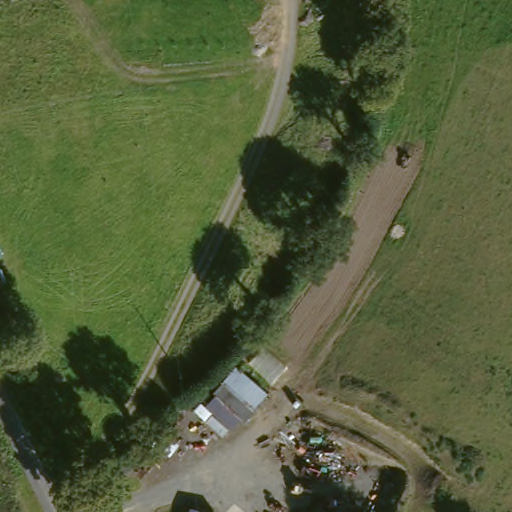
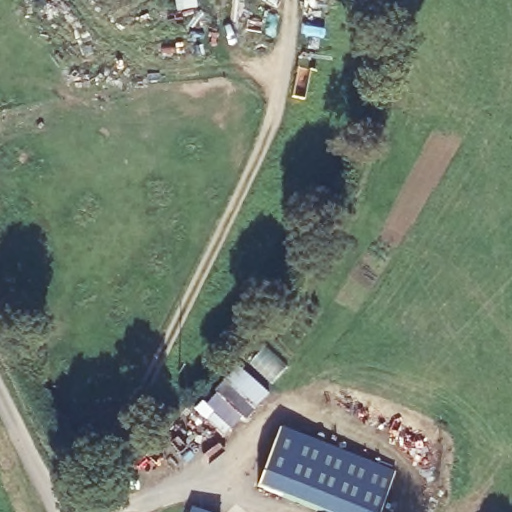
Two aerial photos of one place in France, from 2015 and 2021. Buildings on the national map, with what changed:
new [(206,422),(214,413),(206,406),(215,395),(216,394),(212,390),(237,365),(269,395),(243,422),(239,417),(223,435),(206,422)]
demolished [(274,398),(254,420),(218,392),(239,367),(274,398)]
new [(257,488),(281,427),(396,472),(381,512),(317,512),(257,488)]
unchanged [(194,506),(211,512),(192,512),(194,506)]

